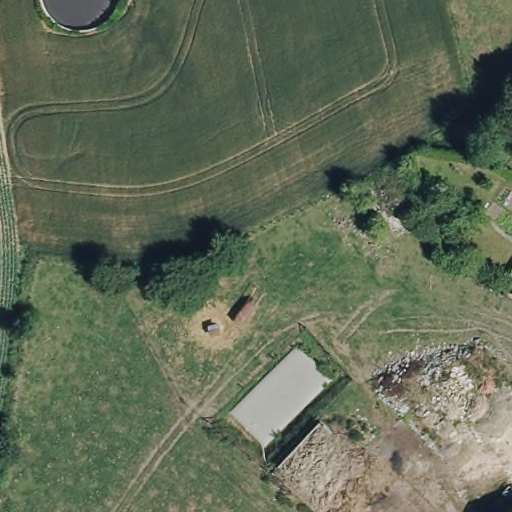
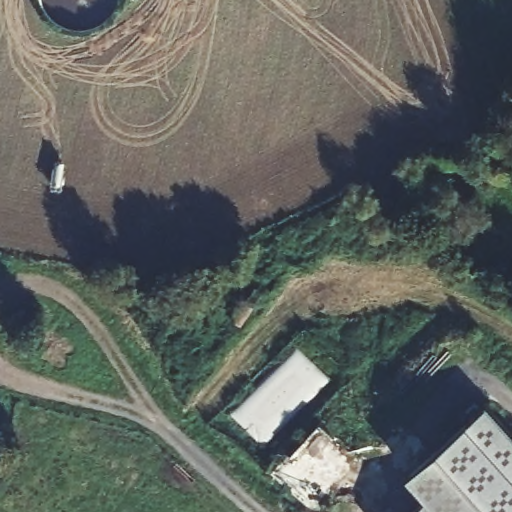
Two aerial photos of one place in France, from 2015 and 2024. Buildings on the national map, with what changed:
new [(426,497),(406,477),(486,404),(512,434),(512,512),(410,512),(426,497)]

